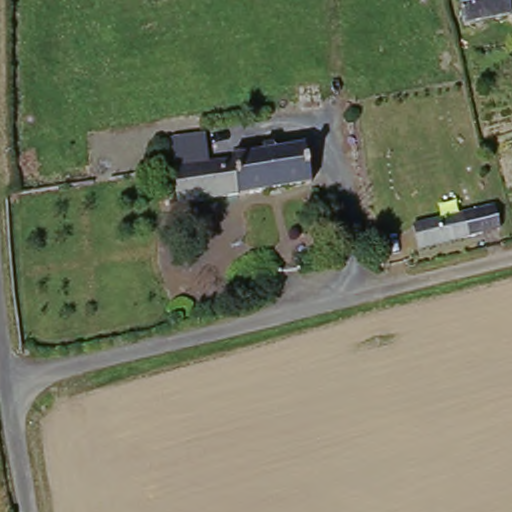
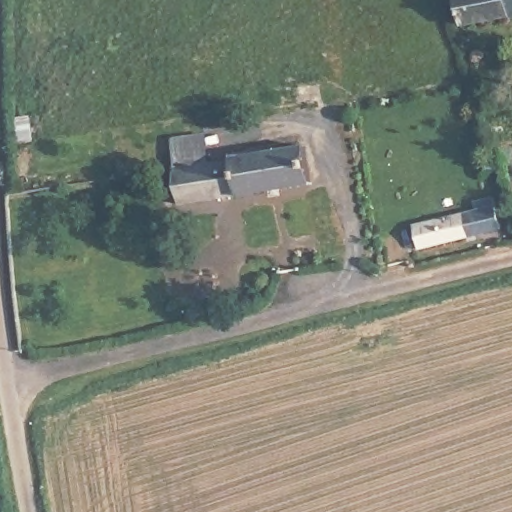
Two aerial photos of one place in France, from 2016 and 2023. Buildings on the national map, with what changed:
unchanged [(512,15),(467,25),(461,0),(512,0),(512,15)]
unchanged [(204,131),(207,165),(172,170),(170,135),(204,131)]
unchanged [(236,161),(236,158),(307,146),(314,185),(177,206),(172,170),(236,161)]
unchanged [(504,199),(511,221),(415,252),(407,231),(475,209),(504,199)]

